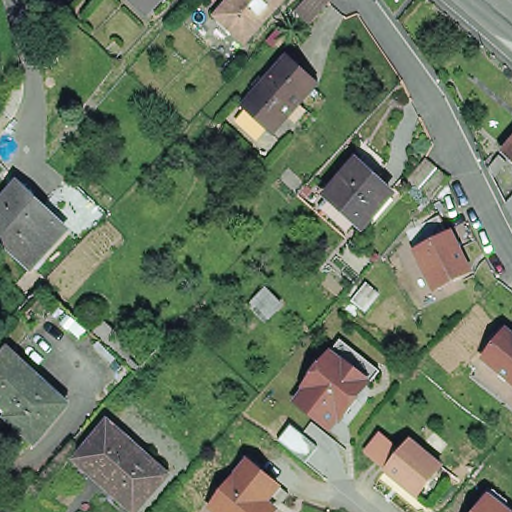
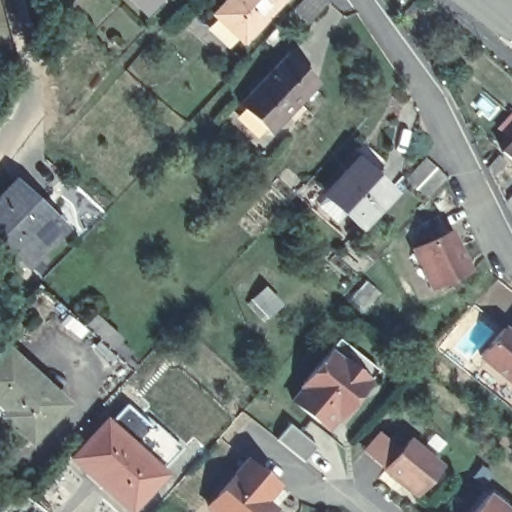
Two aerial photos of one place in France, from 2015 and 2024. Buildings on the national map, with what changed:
unchanged [(134,0),(151,0),(143,8),(134,0)]
unchanged [(213,18),(224,6),(221,2),(223,0),(285,0),(243,46),(213,18)]
unchanged [(294,6),(296,4),(301,0),(327,0),(309,19),(294,6)]
unchanged [(314,82),(264,133),(233,103),(284,52),(314,82)]
unchanged [(501,151),(512,138),(512,161),(501,151)]
unchanged [(391,192),(361,225),(324,193),(355,160),(391,192)]
unchanged [(58,238),(59,239),(33,269),(0,238),(0,204),(18,184),(24,189),(44,208),(67,229),(58,238)]
unchanged [(509,207),(512,203),(512,214),(509,207)]
unchanged [(453,231),(472,269),(434,288),(415,250),(453,231)]
unchanged [(279,303),(264,313),(253,298),(269,287),(279,303)]
unchanged [(480,356),(502,329),(512,337),(512,382),(480,356)]
unchanged [(331,433),(294,401),(304,388),(301,385),(333,347),(373,381),(331,433)]
unchanged [(10,410),(0,402),(0,356),(4,350),(38,380),(43,373),(69,397),(59,409),(30,440),(4,416),(10,410)]
unchanged [(164,473),(131,510),(71,457),(104,420),(164,473)]
unchanged [(408,442),(444,472),(419,503),(383,473),(408,442)]
unchanged [(247,460),(288,494),(273,512),(215,512),(209,507),(247,460)]
unchanged [(512,510),(512,512),(477,512),(492,493),(512,510)]

